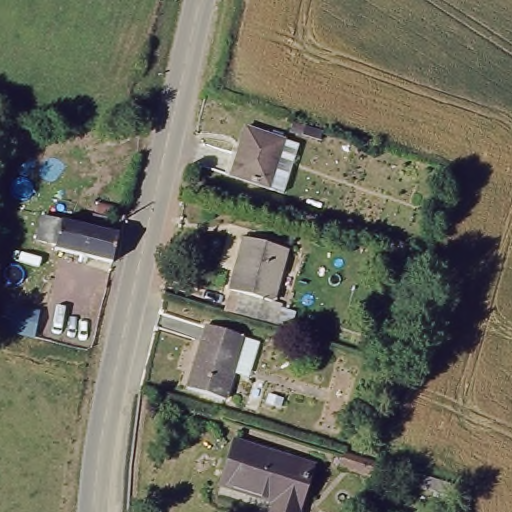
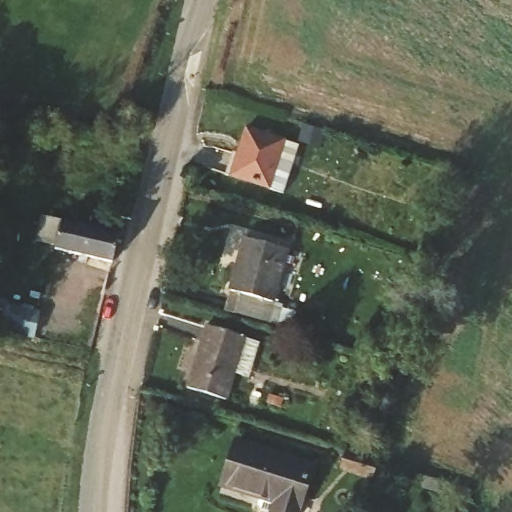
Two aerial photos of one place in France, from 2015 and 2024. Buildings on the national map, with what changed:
unchanged [(286,187),(270,184),(226,174),(239,124),(282,135),(300,139),(286,187)]
unchanged [(85,197),(121,206),(116,227),(107,265),(51,252),(52,249),(32,245),(39,209),(80,218),(85,197)]
unchanged [(281,243),(266,295),(273,297),(267,320),(224,307),(230,287),(222,285),(237,231),(281,243)]
unchanged [(35,301),(29,327),(0,322),(0,300),(1,295),(35,301)]
unchanged [(235,335),(234,337),(249,342),(240,375),(225,371),(218,398),(178,387),(195,324),(235,335)]
unchanged [(308,456),(293,512),(279,512),(266,508),(270,494),(219,480),(231,435),(308,456)]

